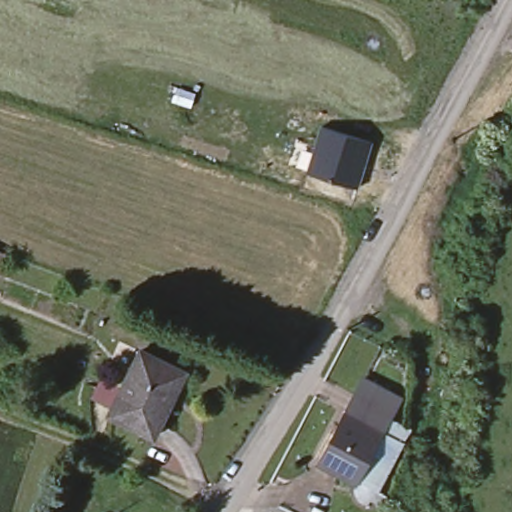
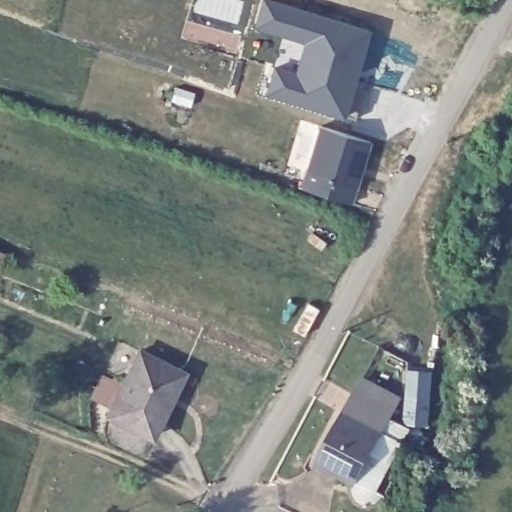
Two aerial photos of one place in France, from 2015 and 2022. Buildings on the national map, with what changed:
new [(296,70),(303,42),(253,29),(261,0),(267,0),(371,28),(357,78),(367,81),(356,119),(346,116),(265,96),(274,64),(296,70)]
unchanged [(372,142),(361,188),(307,175),(320,127),(372,142)]
unchanged [(0,274),(0,248),(9,251),(1,274),(0,274)]
unchanged [(140,350),(180,370),(166,400),(170,401),(152,436),(107,414),(140,350)]
unchanged [(405,392),(390,415),(412,428),(373,495),(312,464),(357,373),(405,392)]

